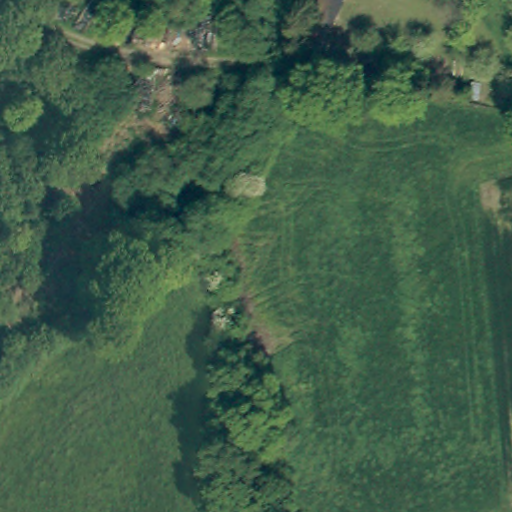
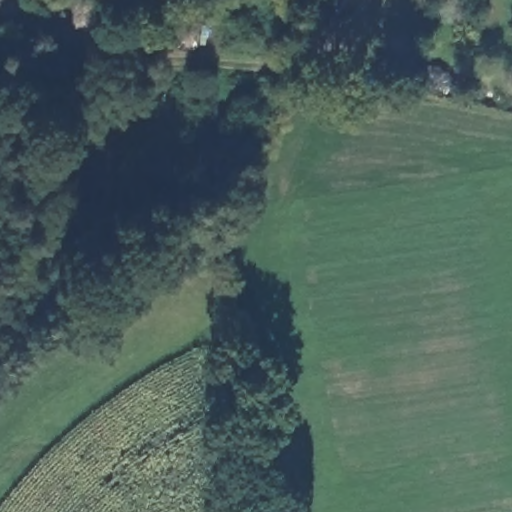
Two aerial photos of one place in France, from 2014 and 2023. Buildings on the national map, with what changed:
unchanged [(314,19),(322,0),(347,0),(335,28),(314,19)]

